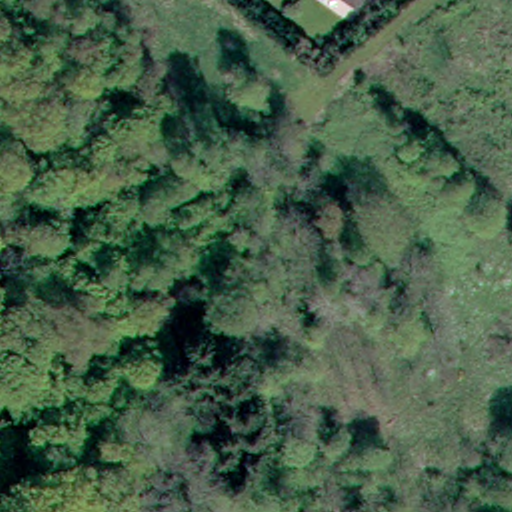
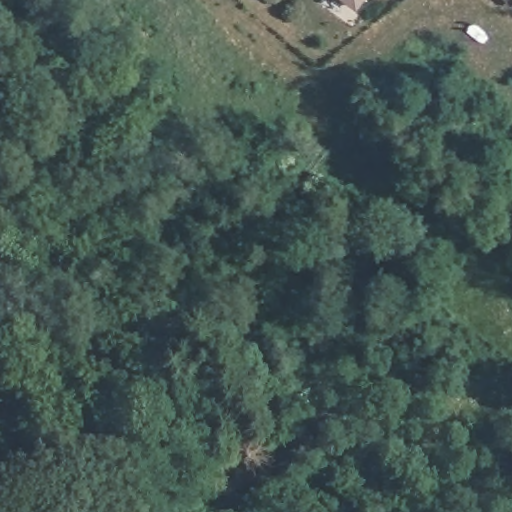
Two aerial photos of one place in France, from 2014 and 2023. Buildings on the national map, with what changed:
unchanged [(357,5),(350,0),(362,0),(357,5)]

